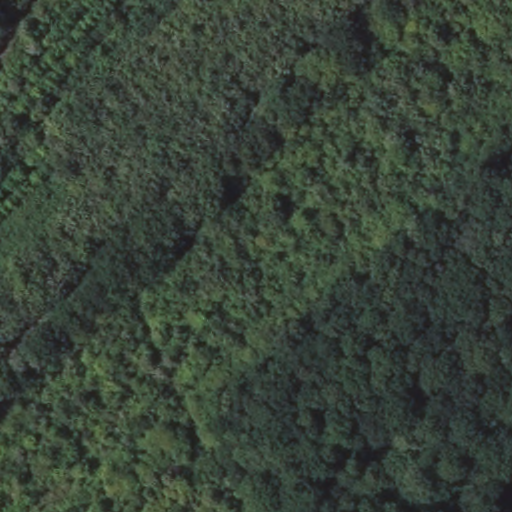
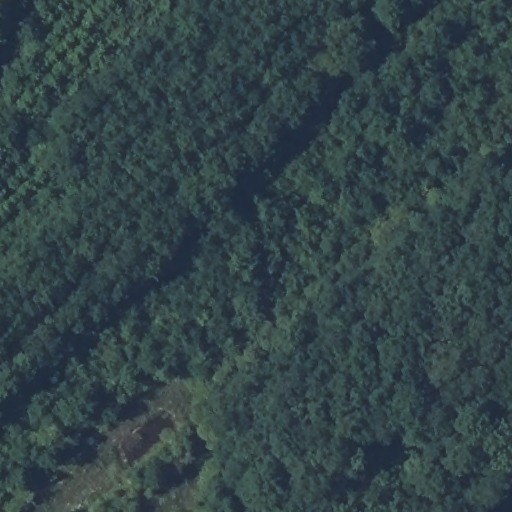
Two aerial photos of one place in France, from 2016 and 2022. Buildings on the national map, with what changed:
[]

